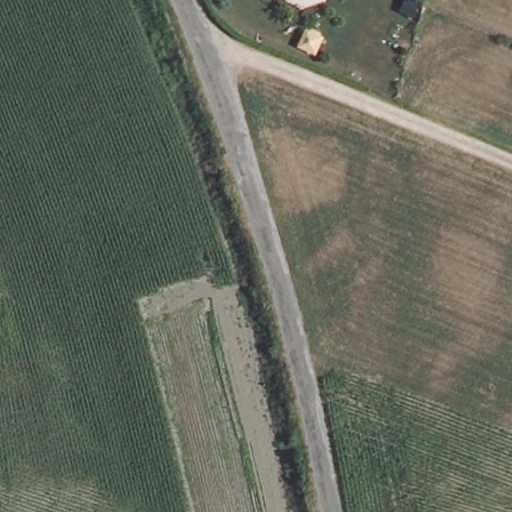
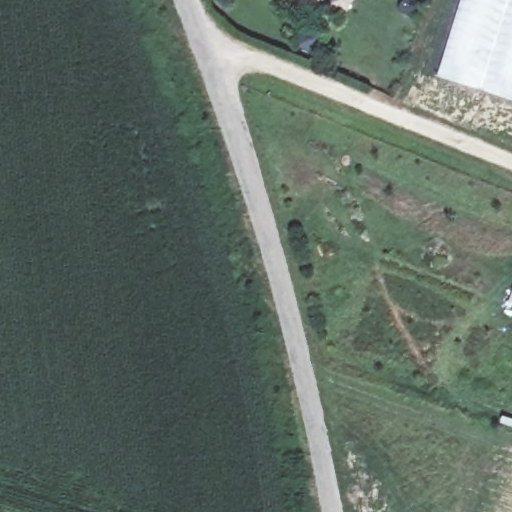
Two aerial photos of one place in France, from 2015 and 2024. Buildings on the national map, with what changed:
new [(460,0),(512,0),(512,100),(437,75),(460,0)]

